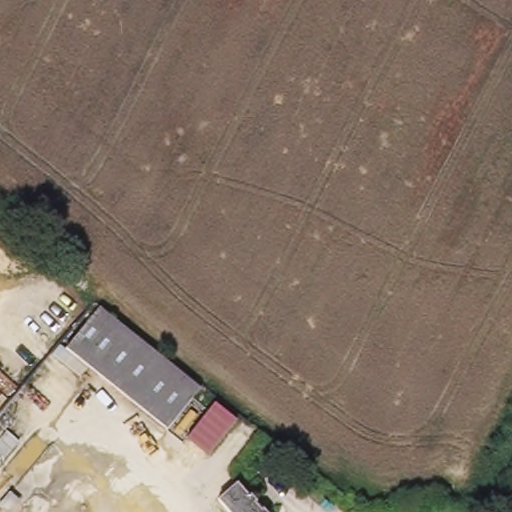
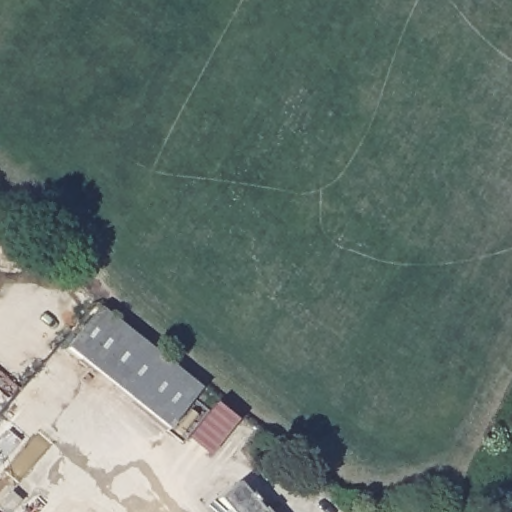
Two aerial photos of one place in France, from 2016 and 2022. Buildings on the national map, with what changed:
unchanged [(66,354),(99,311),(182,375),(201,388),(167,433),(127,402),(66,354)]
unchanged [(210,457),(186,440),(216,402),(241,418),(210,457)]
unchanged [(219,500),(237,483),(261,512),(228,512),(219,500)]

